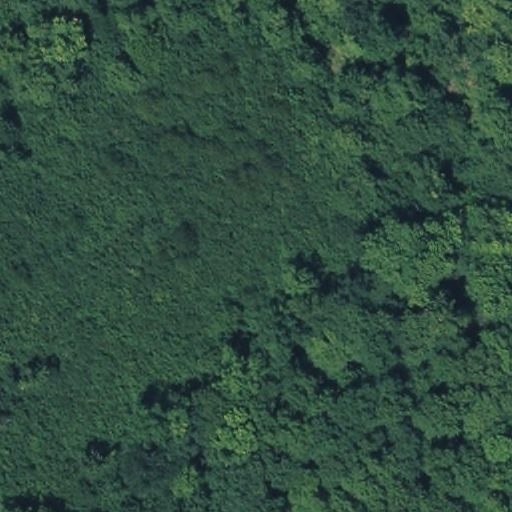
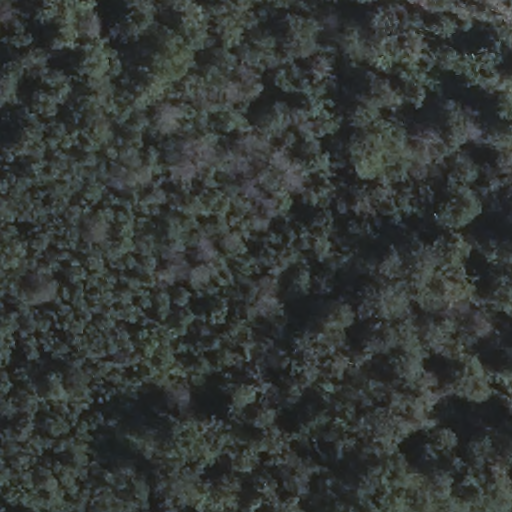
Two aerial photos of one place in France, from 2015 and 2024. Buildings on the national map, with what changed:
[]

